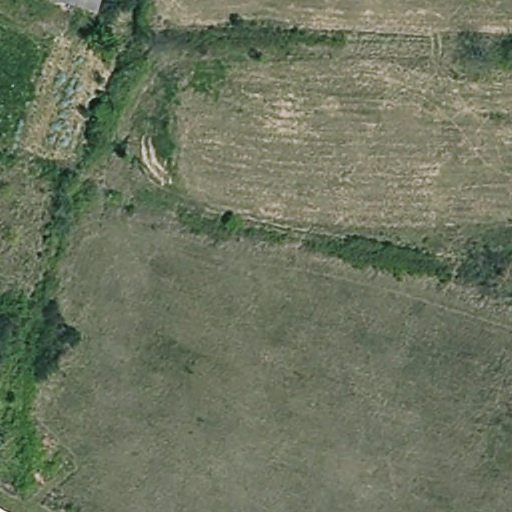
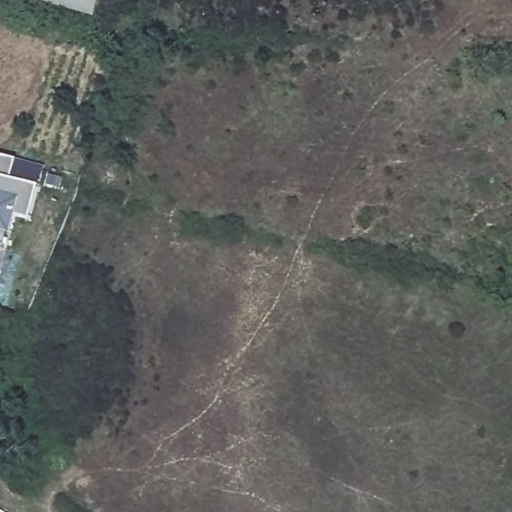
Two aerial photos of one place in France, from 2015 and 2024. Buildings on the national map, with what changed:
unchanged [(98,0),(92,19),(35,0),(98,0)]
new [(10,209),(6,226),(0,225),(0,152),(12,155),(9,173),(35,179),(27,213),(10,209)]

